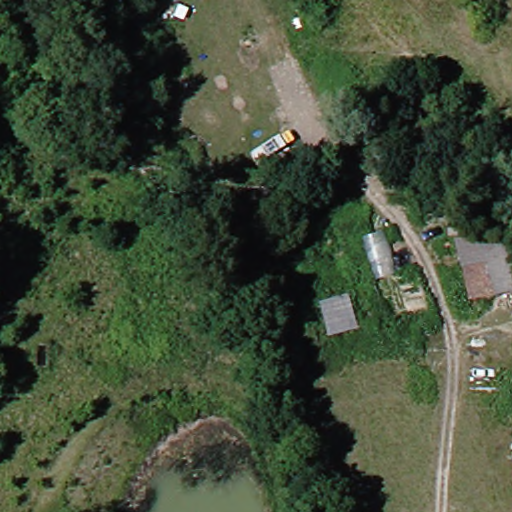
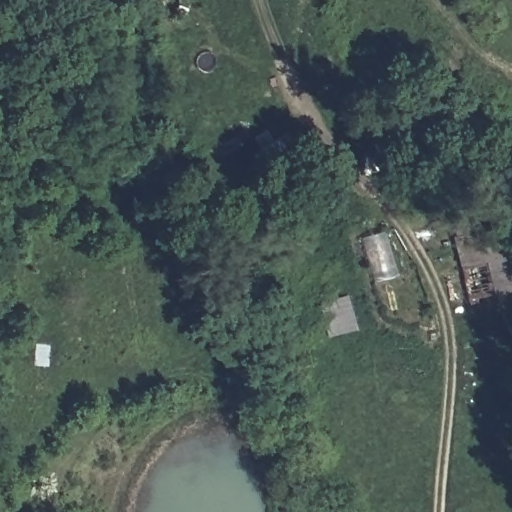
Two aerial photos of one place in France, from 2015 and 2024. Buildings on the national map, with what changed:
unchanged [(504,296),(452,307),(439,241),(493,230),(504,296)]

